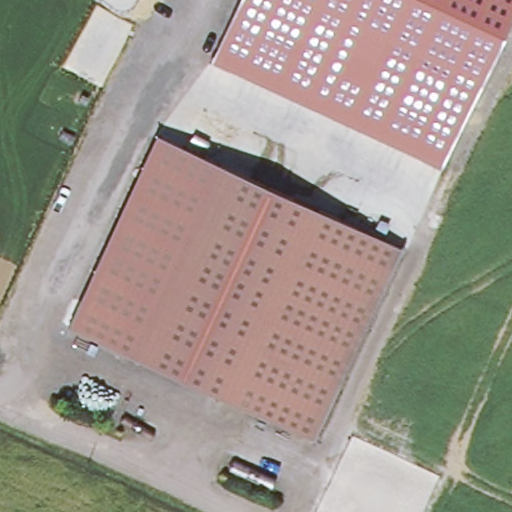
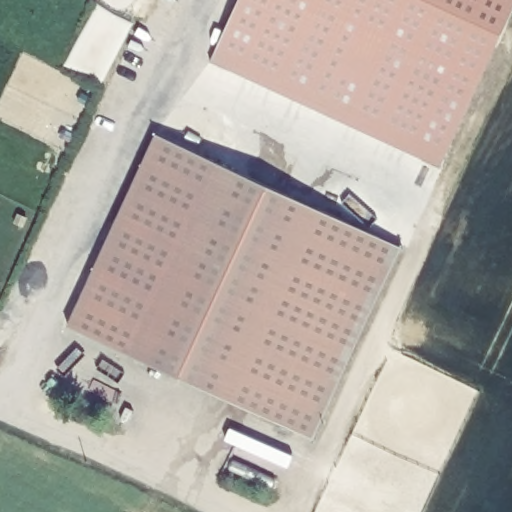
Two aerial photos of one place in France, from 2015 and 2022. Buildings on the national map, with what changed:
unchanged [(210,61),(239,0),(512,0),(512,12),(441,167),(210,61)]
unchanged [(315,440),(71,323),(155,132),(403,246),(315,440)]

